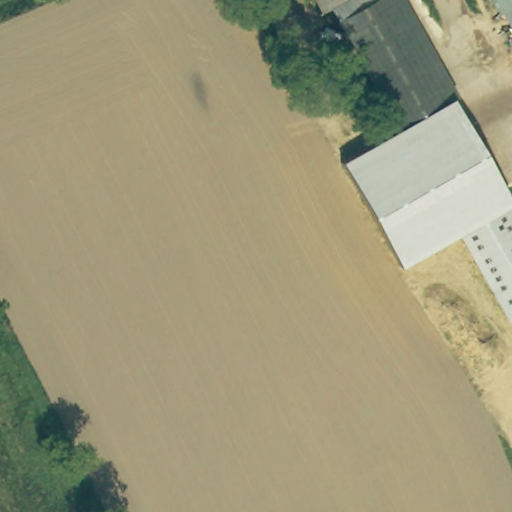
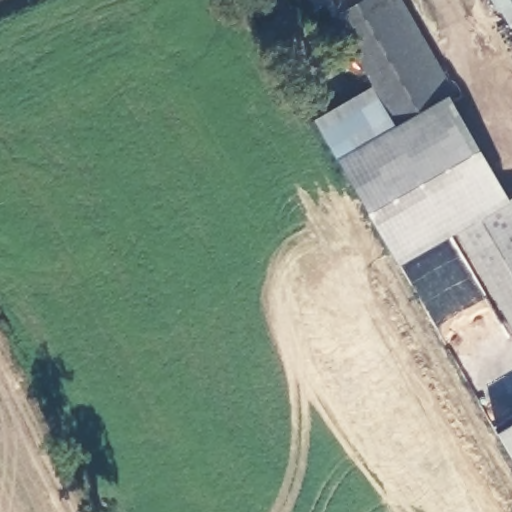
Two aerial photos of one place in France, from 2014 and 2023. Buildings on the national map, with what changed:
unchanged [(318,10),(313,0),(312,0),(336,0),(318,10)]
unchanged [(346,10),(364,0),(400,0),(449,95),(403,120),(346,10)]
new [(315,120),(382,79),(403,120),(338,158),(315,120)]
unchanged [(449,95),(511,200),(512,199),(512,328),(457,234),(400,265),(338,158),(403,120),(449,95)]
new [(498,438),(512,429),(512,463),(498,438)]

